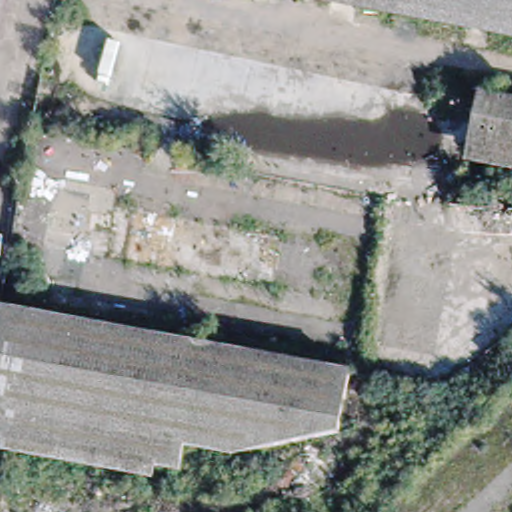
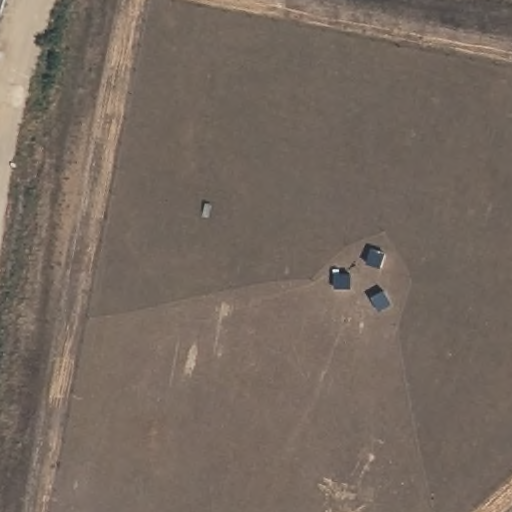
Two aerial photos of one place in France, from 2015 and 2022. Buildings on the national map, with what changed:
demolished [(345,0),(512,0),(512,32),(345,0)]
demolished [(133,212),(281,241),(273,289),(125,261),(125,256),(133,212)]
demolished [(289,364),(344,374),(334,434),(278,445),(225,456),(177,448),(174,471),(0,439),(0,311),(106,330),(289,364)]

